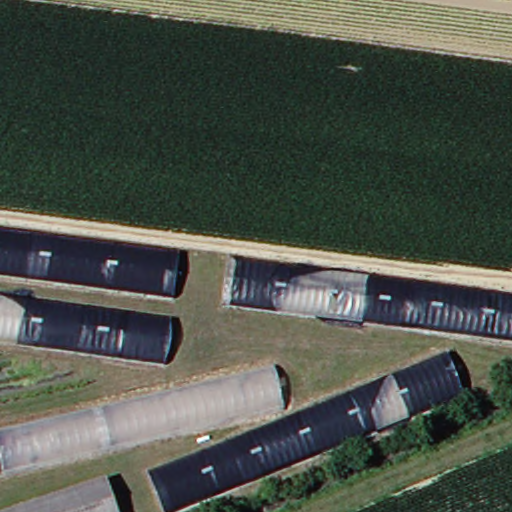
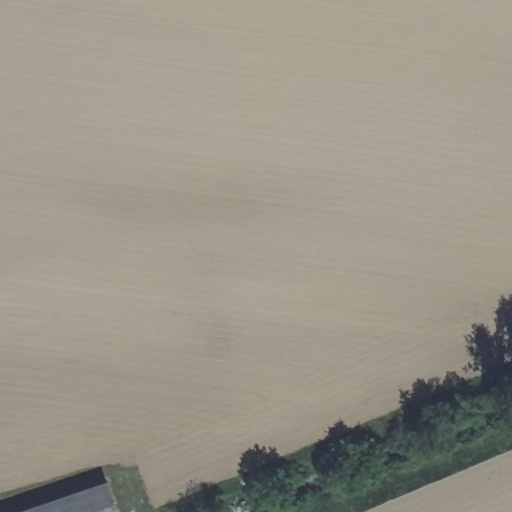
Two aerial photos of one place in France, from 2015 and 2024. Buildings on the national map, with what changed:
demolished [(0,278),(0,233),(172,255),(164,297),(0,278)]
demolished [(512,294),(512,337),(223,300),(229,257),(512,294)]
demolished [(0,346),(0,298),(162,317),(153,367),(0,346)]
demolished [(445,353),(467,392),(170,512),(164,512),(148,472),(445,353)]
demolished [(0,427),(263,367),(274,410),(0,474),(0,427)]
unchanged [(98,482),(108,512),(7,512),(98,482)]

